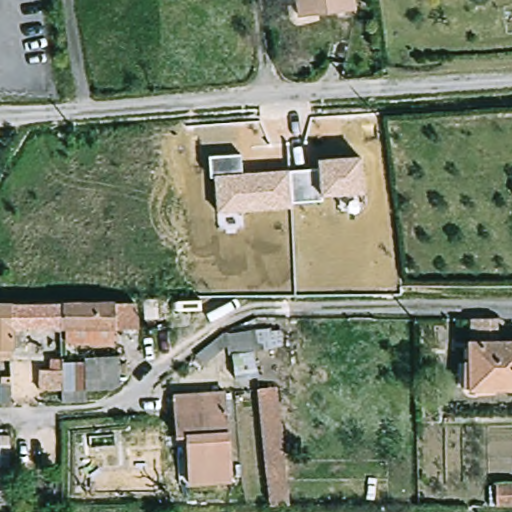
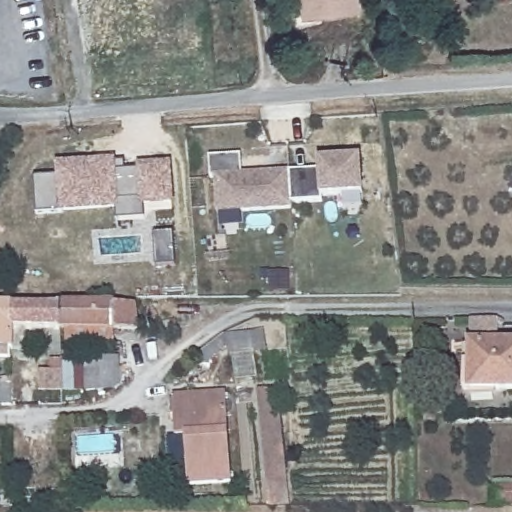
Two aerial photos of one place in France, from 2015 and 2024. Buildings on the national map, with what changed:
unchanged [(303,17),(300,0),(356,0),(357,9),(303,17)]
unchanged [(361,156),(363,193),(323,196),(322,203),(293,204),(293,209),(218,214),(216,176),(210,179),(209,157),(243,154),(245,174),(290,171),(318,168),(318,158),(361,156)]
new [(115,223),(115,208),(62,209),(62,212),(35,212),(34,175),(60,175),(59,165),(114,164),(127,164),(128,173),(142,173),(142,171),(171,170),(171,207),(143,207),(144,222),(115,223)]
unchanged [(13,304),(12,325),(13,349),(11,360),(0,360),(0,304),(13,304)]
unchanged [(60,329),(25,329),(25,349),(13,349),(12,325),(13,304),(61,304),(60,329)]
unchanged [(137,330),(114,329),(60,329),(61,304),(114,304),(134,304),(137,330)]
unchanged [(198,355),(226,334),(261,331),(265,353),(228,355),(205,366),(198,355)]
unchanged [(463,342),(512,342),(512,390),(463,391),(463,342)]
unchanged [(40,370),(64,369),(66,361),(121,357),(122,389),(41,391),(40,370)]
unchanged [(11,405),(1,406),(1,378),(10,378),(11,385),(11,405)]
unchanged [(278,390),(292,505),(271,509),(258,393),(278,390)]
unchanged [(176,438),(173,397),(225,393),(230,482),(189,485),(179,486),(176,438)]
unchanged [(496,506),(496,485),(512,485),(512,506),(496,506)]

